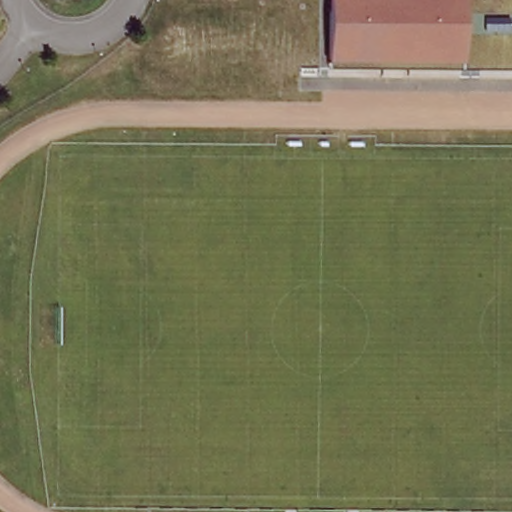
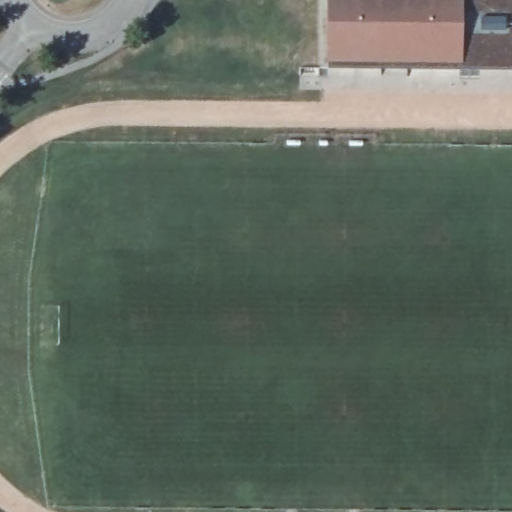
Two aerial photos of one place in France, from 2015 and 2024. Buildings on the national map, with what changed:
unchanged [(326,0),(512,0),(512,69),(326,67),(326,0)]

